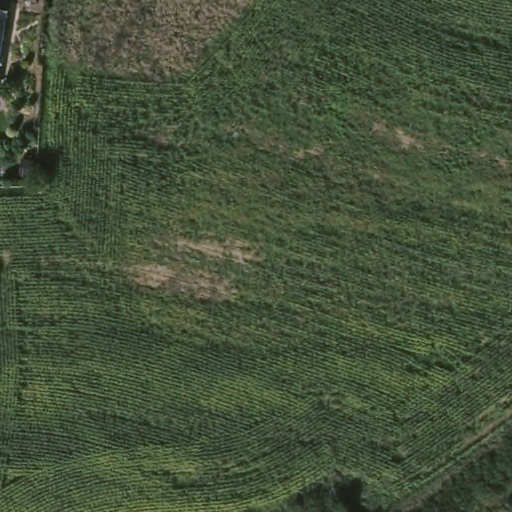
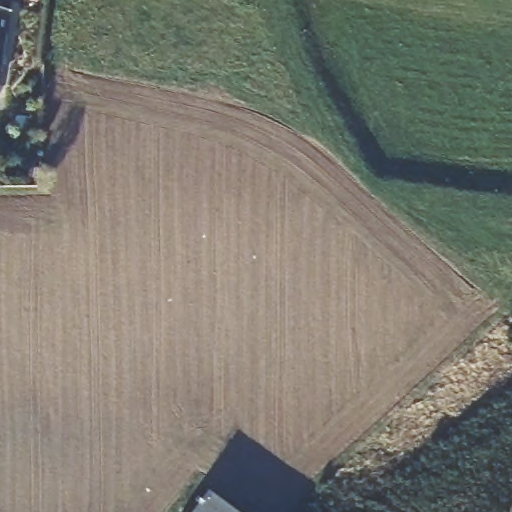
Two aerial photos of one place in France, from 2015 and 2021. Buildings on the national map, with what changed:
unchanged [(0,83),(0,13),(11,15),(0,83)]
new [(206,493),(233,512),(192,512),(206,493)]

